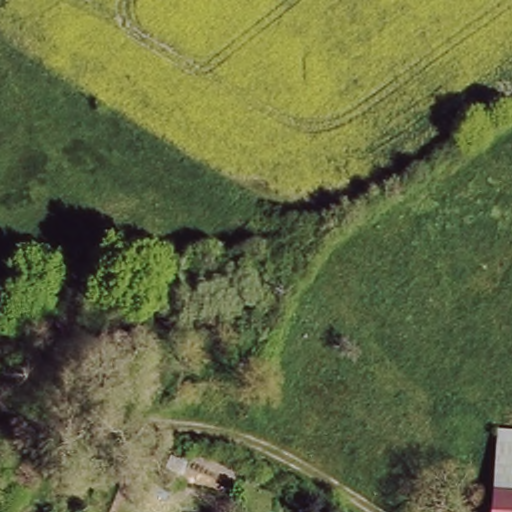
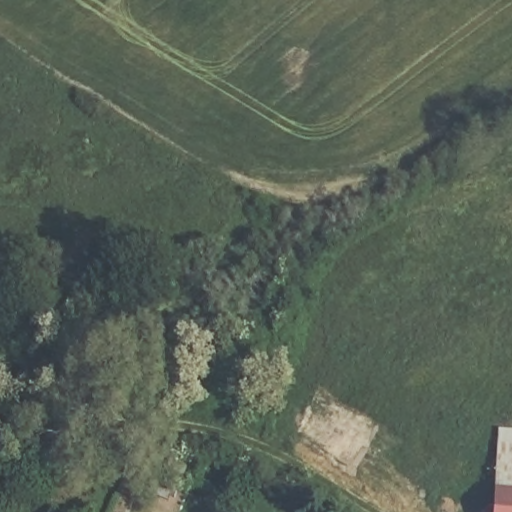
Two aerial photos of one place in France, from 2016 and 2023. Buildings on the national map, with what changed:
unchanged [(498,426),(512,428),(512,496),(499,496),(498,426)]
unchanged [(304,468),(299,501),(288,500),(291,467),(304,468)]
unchanged [(501,512),(500,502),(499,496),(512,496),(512,512),(501,512)]

